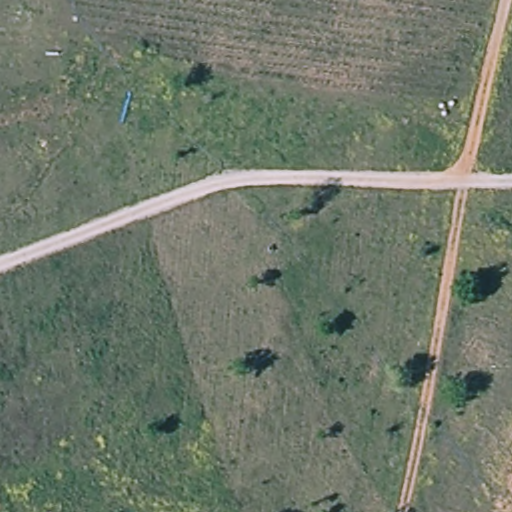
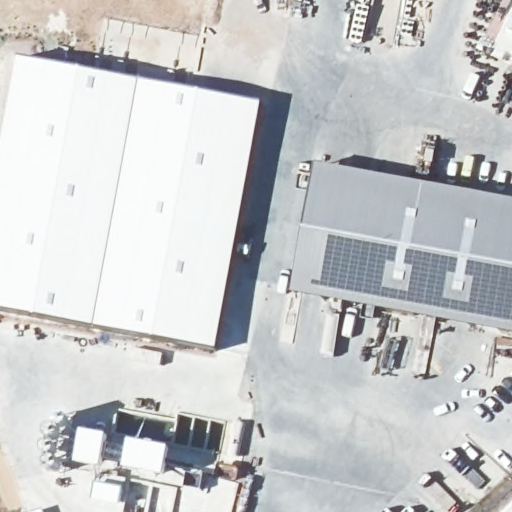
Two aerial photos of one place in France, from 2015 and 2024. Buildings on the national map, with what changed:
new [(487,52),(512,3),(512,68),(487,52)]
new [(0,173),(21,59),(264,103),(218,351),(0,311),(0,173)]
new [(512,201),(512,334),(293,294),(318,165),(512,201)]
new [(78,466),(83,433),(110,438),(103,471),(78,466)]
new [(128,472),(133,444),(173,452),(167,480),(128,472)]

